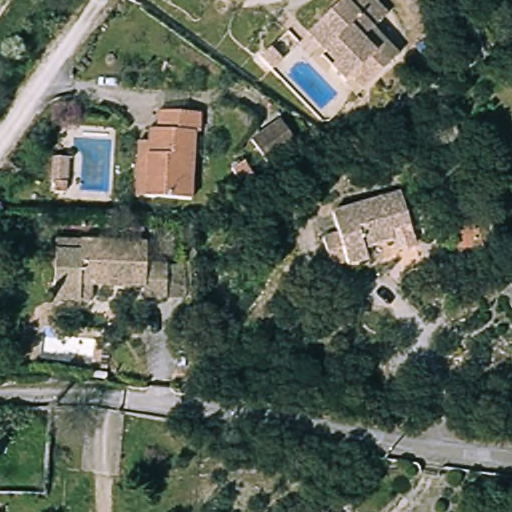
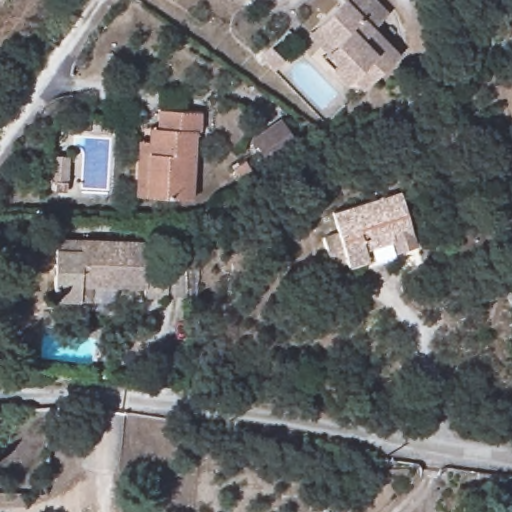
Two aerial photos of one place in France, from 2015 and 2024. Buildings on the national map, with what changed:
unchanged [(338,0),(369,0),(386,17),(370,31),(397,57),(359,94),(304,37),(341,2),(338,0)]
unchanged [(146,142),(156,143),(157,130),(166,130),(166,112),(211,115),(209,145),(206,145),(203,201),(144,199),(146,142)]
unchanged [(291,148),(259,169),(242,143),(274,122),(291,148)]
unchanged [(53,154),(50,191),(38,189),(39,179),(35,179),(36,153),(53,154)]
unchanged [(398,189),(409,225),(391,230),(392,240),(364,249),(366,257),(346,263),(344,256),(328,261),(319,232),(335,228),(329,209),(398,189)]
unchanged [(459,221),(485,213),(490,232),(464,240),(459,221)]
unchanged [(48,236),(139,241),(138,261),(159,262),(159,265),(177,264),(178,296),(158,295),(158,299),(134,298),(134,288),(84,285),(84,302),(44,300),(48,236)]

